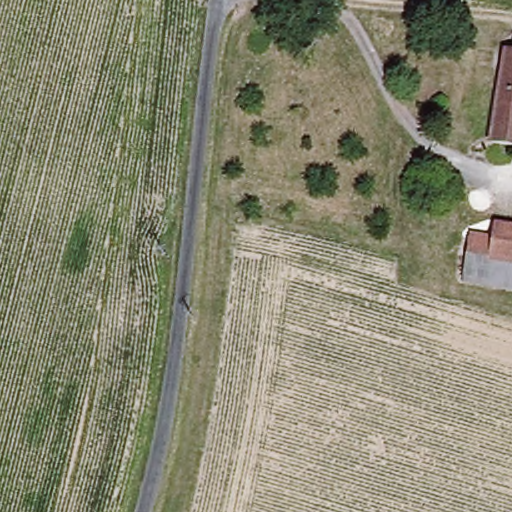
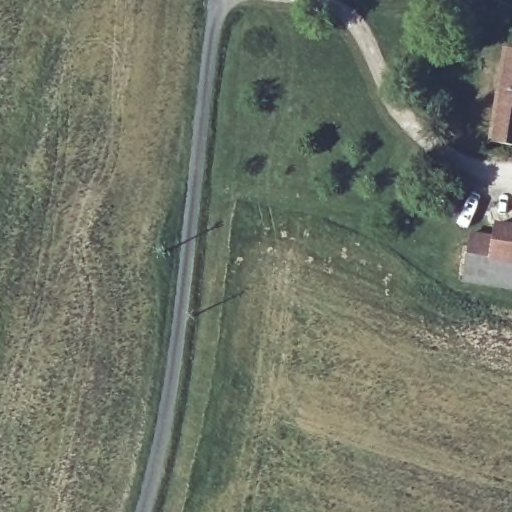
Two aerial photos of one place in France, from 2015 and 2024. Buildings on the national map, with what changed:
unchanged [(501,143),(501,151),(490,150),(491,139),(466,135),(481,41),(512,46),(512,145),(501,143)]
unchanged [(462,281),(469,234),(497,239),(499,223),(512,226),(512,290),(462,281)]

